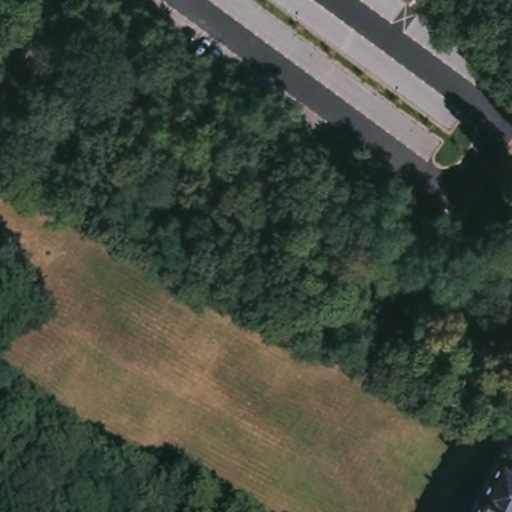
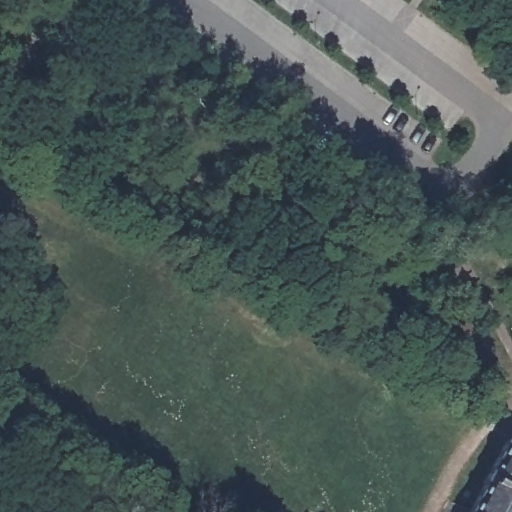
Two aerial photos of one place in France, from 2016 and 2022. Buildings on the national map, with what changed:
unchanged [(512,512),(445,512),(443,511),(448,501),(469,511),(505,439),(512,443),(512,512)]

